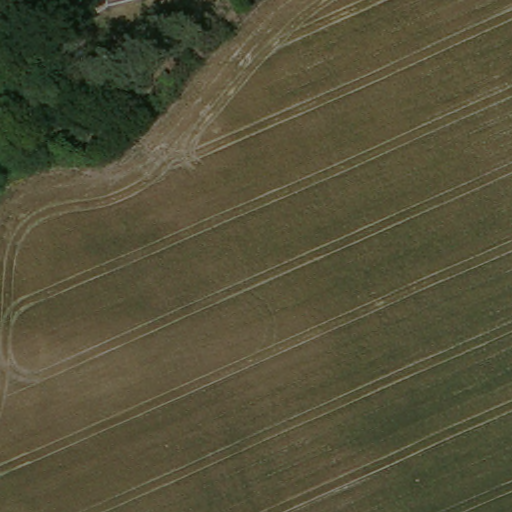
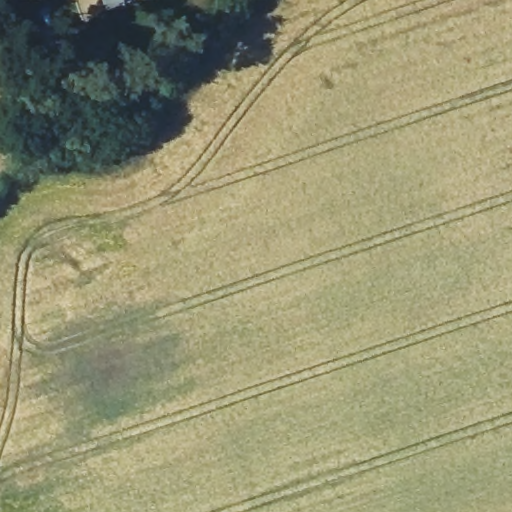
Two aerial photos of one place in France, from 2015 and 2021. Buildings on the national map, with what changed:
unchanged [(118,0),(133,0),(119,4),(118,0)]

